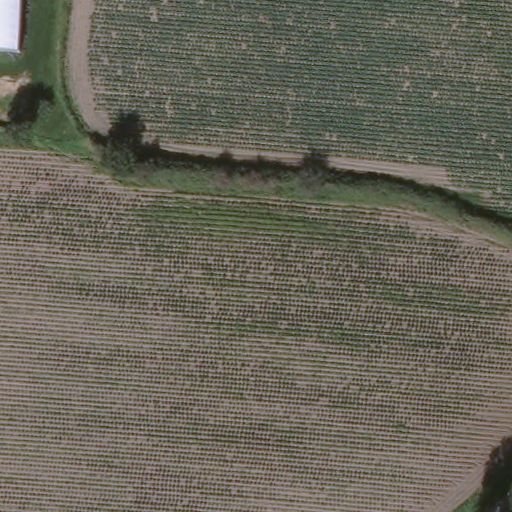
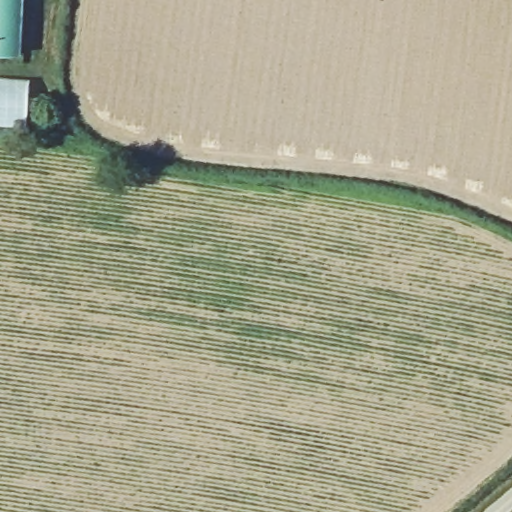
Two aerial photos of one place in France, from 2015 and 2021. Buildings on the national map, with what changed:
unchanged [(14,58),(0,57),(0,0),(18,0),(14,58)]
new [(27,122),(0,121),(0,82),(29,84),(27,122)]

